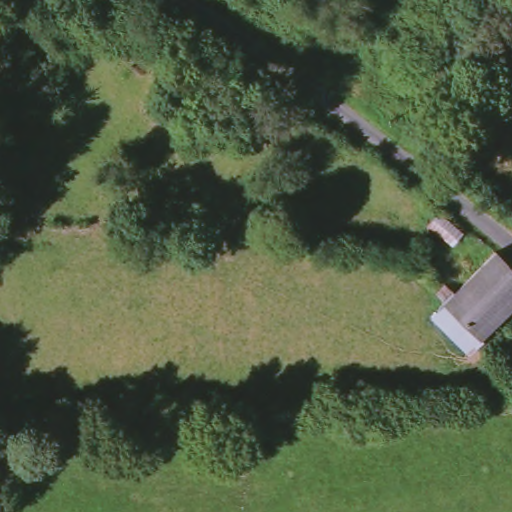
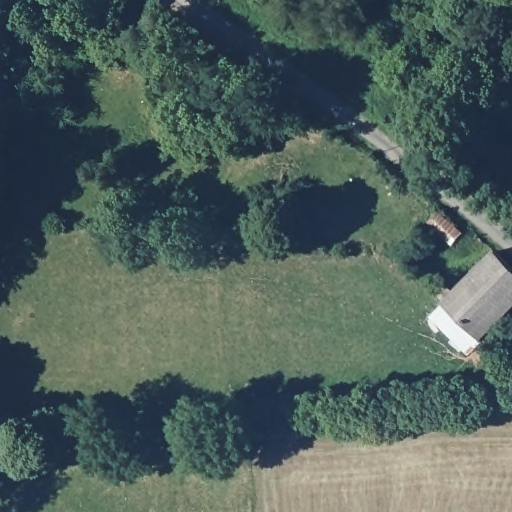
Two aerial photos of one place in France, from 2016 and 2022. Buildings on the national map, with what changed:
unchanged [(447,225),(440,237),(405,216),(412,203),(447,225)]
unchanged [(512,315),(476,348),(432,296),(440,290),(452,302),(500,257),(512,268),(512,315)]

